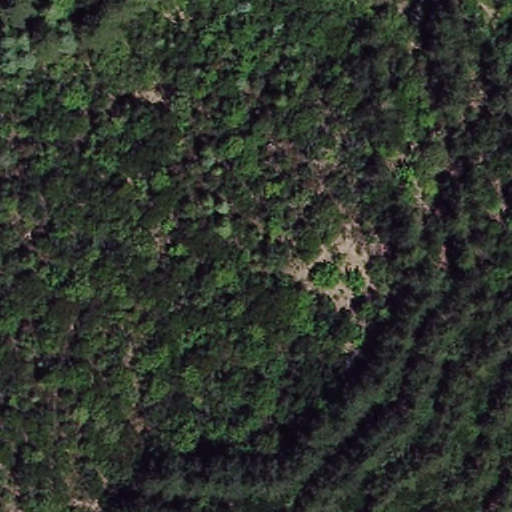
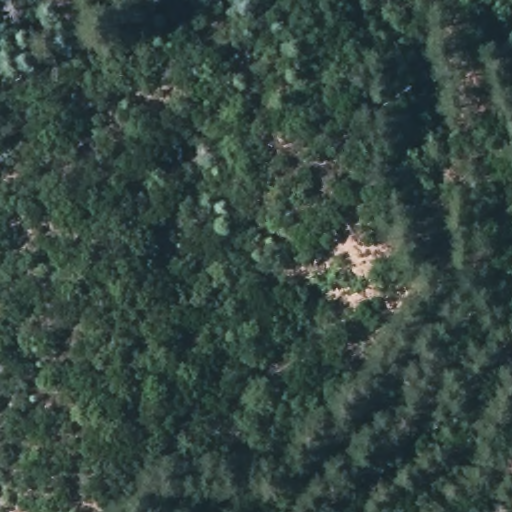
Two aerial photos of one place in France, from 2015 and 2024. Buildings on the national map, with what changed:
[]

